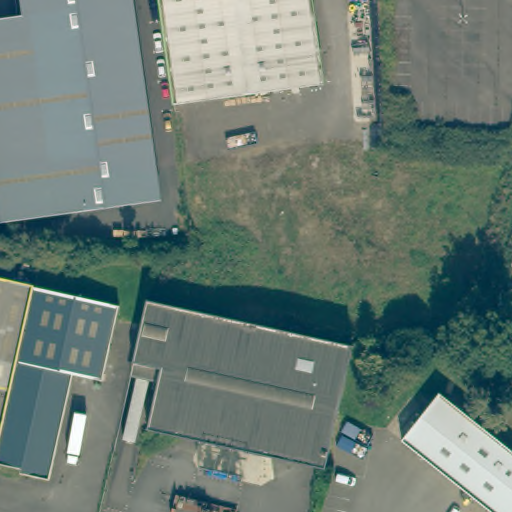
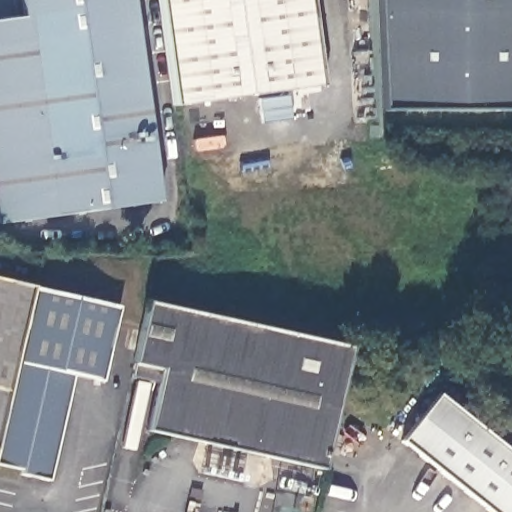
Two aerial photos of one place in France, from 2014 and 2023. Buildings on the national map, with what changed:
unchanged [(160,190),(2,212),(0,194),(0,9),(25,5),(25,0),(136,0),(160,190)]
unchanged [(323,82),(172,105),(158,0),(312,0),(323,82)]
new [(380,0),(512,0),(512,108),(386,110),(380,0)]
unchanged [(115,305),(99,381),(72,375),(47,482),(19,475),(21,470),(0,465),(0,279),(115,305)]
unchanged [(146,425),(150,405),(157,364),(132,358),(147,293),(225,312),(351,345),(323,465),(146,425)]
unchanged [(437,396),(512,454),(512,512),(487,512),(401,442),(437,396)]

